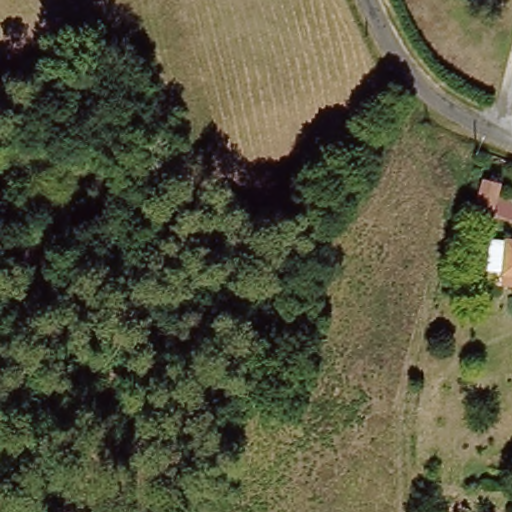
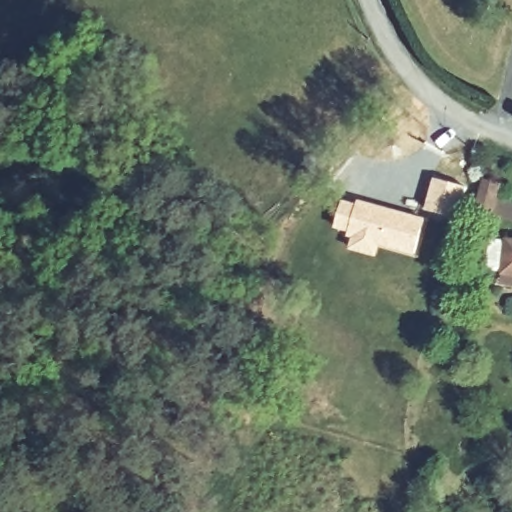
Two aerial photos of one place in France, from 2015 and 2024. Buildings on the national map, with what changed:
new [(432,177),(467,187),(457,219),(423,210),(432,177)]
new [(482,178),(502,184),(495,213),(475,207),(482,178)]
new [(342,198),(357,202),(358,197),(427,218),(416,258),(380,248),(377,258),(347,249),(351,237),(347,236),(348,233),(332,228),(342,198)]
unchanged [(505,274),(507,242),(512,242),(512,275),(505,274)]

